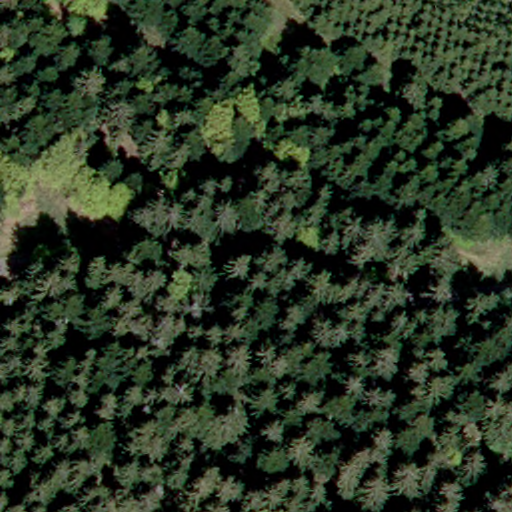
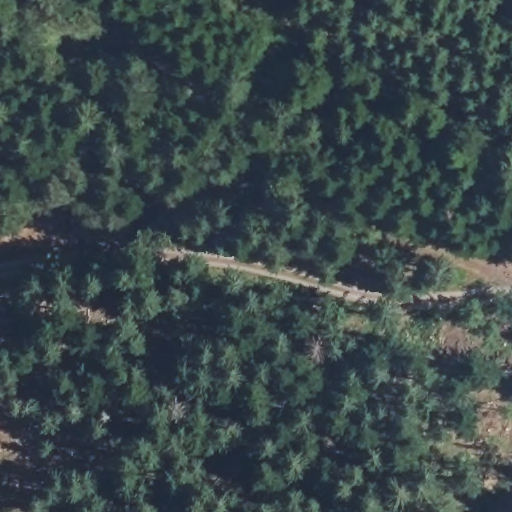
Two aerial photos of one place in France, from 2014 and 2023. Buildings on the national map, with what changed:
[]

